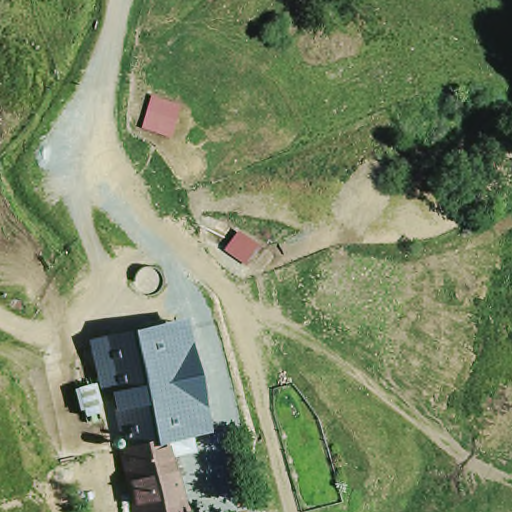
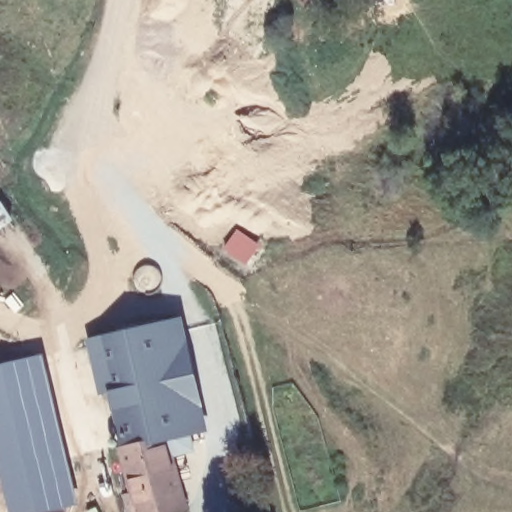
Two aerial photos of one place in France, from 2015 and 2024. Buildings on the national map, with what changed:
new [(172,136),(142,128),(152,96),(182,105),(172,136)]
new [(248,264),(226,249),(239,231),(260,245),(248,264)]
unchanged [(163,320),(192,422),(169,428),(189,505),(166,512),(145,512),(98,338),(163,320)]
new [(57,512),(7,512),(0,484),(0,364),(44,353),(77,507),(57,512)]

